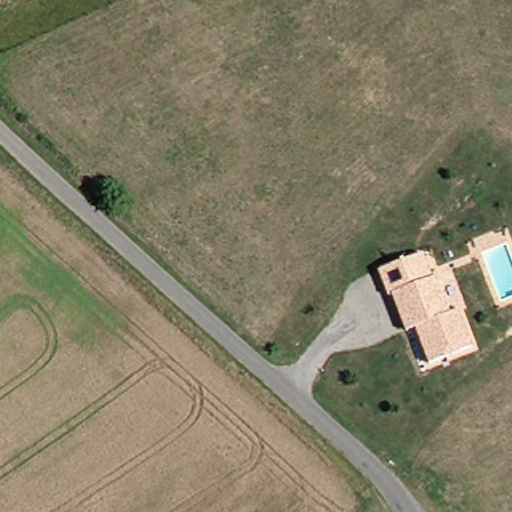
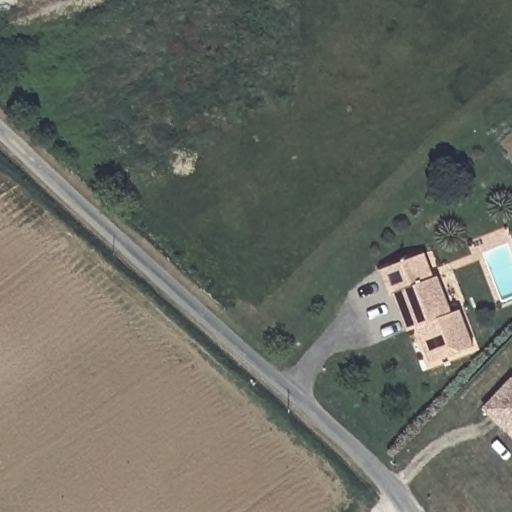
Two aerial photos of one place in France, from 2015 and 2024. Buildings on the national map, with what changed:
unchanged [(398,313),(392,294),(388,295),(378,269),(422,253),(432,278),(436,277),(449,314),(457,311),(472,348),(428,364),(415,328),(406,331),(398,313)]
new [(485,413),(511,381),(512,383),(512,436),(485,413)]

